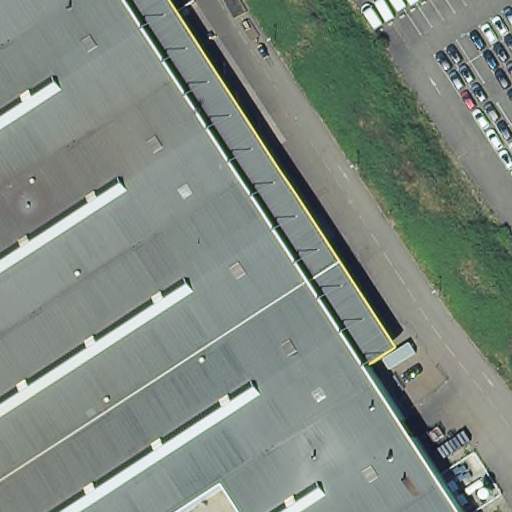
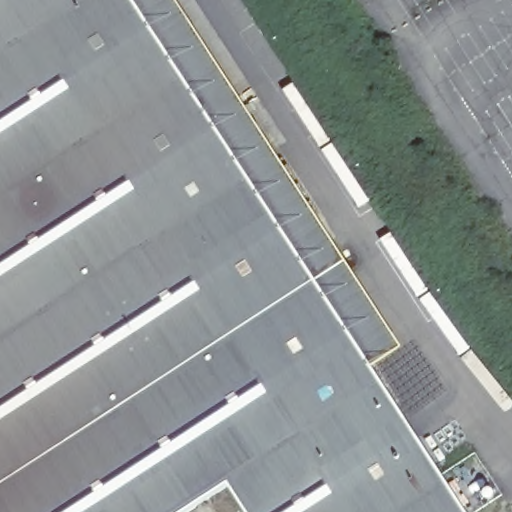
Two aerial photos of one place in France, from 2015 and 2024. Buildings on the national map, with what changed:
unchanged [(405,348),(375,370),(468,512),(250,512),(232,483),(187,512),(0,512),(0,0),(178,0),(405,348)]

